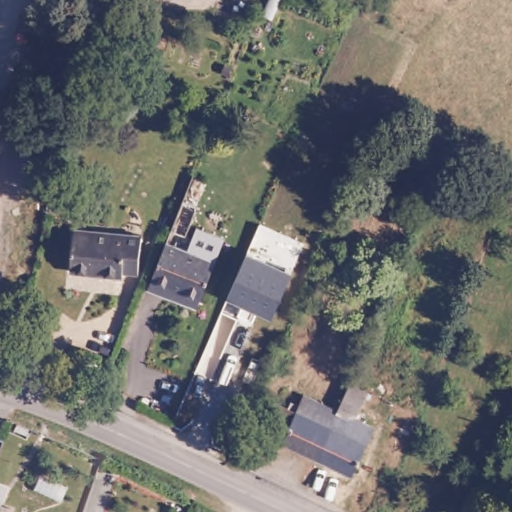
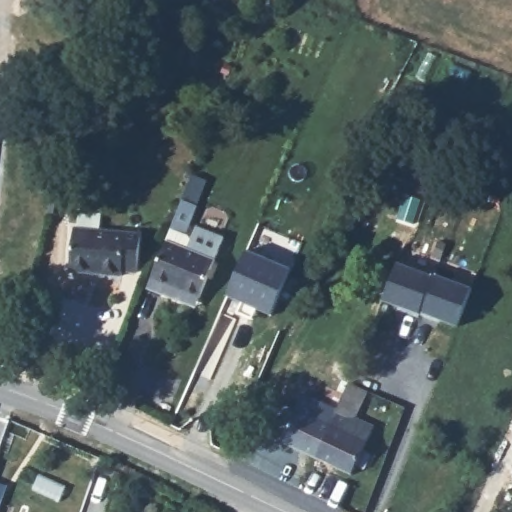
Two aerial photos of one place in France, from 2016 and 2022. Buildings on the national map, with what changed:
unchanged [(133,224),(131,264),(116,263),(115,269),(64,265),(67,218),(133,224)]
unchanged [(161,289),(145,283),(165,232),(214,253),(200,291),(196,303),(161,289)]
unchanged [(229,295),(250,252),(290,269),(271,313),(229,295)]
new [(383,299),(396,262),(471,289),(457,326),(383,299)]
unchanged [(337,403),(348,376),(368,386),(358,411),(375,421),(355,470),(316,453),(337,403)]
unchanged [(281,438),(304,389),(337,403),(316,453),(281,438)]

